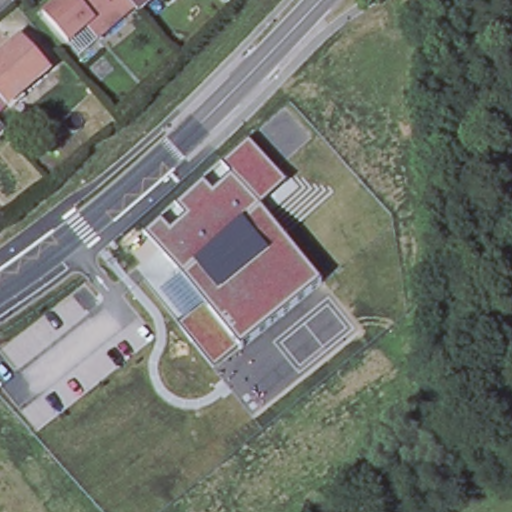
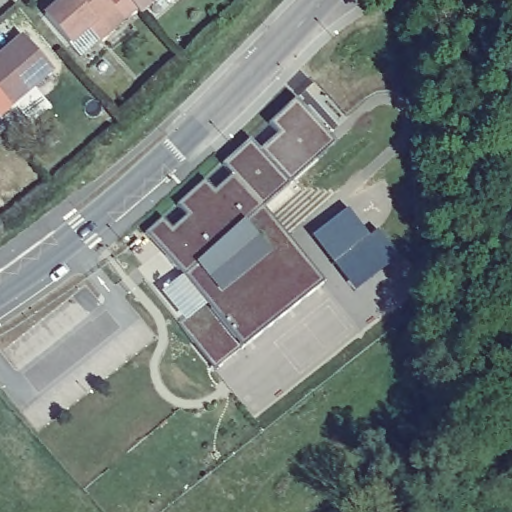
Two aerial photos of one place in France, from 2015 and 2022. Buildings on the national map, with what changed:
unchanged [(49,17),(69,0),(109,0),(129,24),(103,46),(86,61),(75,49),(49,17)]
unchanged [(132,0),(164,0),(146,16),(132,0)]
unchanged [(55,71),(13,108),(0,93),(0,60),(27,37),(55,71)]
new [(334,144),(288,184),(259,151),(278,134),(269,123),(295,100),(334,144)]
unchanged [(239,347),(215,368),(181,325),(183,322),(160,293),(181,275),(144,233),(163,218),(172,229),(187,215),(177,204),(204,181),(213,192),(233,175),(223,164),(249,140),(288,184),(261,208),(321,284),(241,349),(239,347)]
new [(369,235),(376,229),(398,258),(355,291),(312,236),(348,209),(369,235)]

